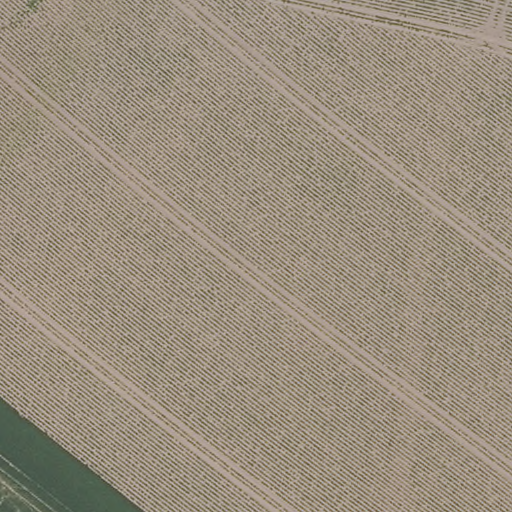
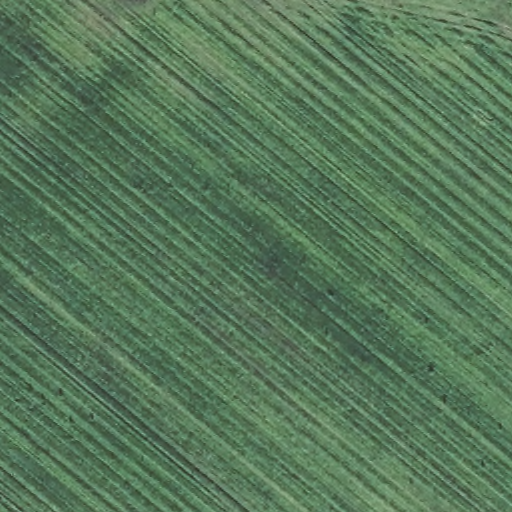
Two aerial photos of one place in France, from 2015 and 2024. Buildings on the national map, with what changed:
[]

